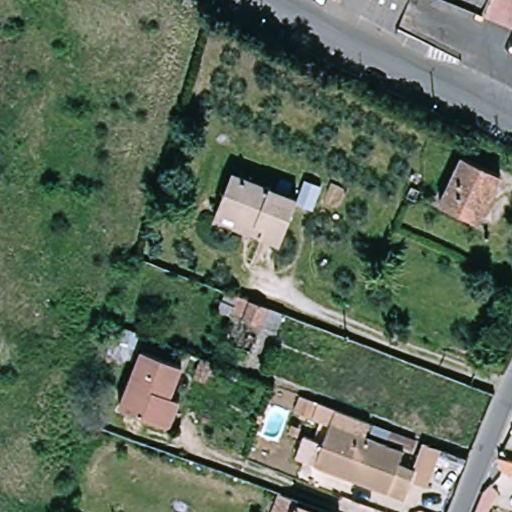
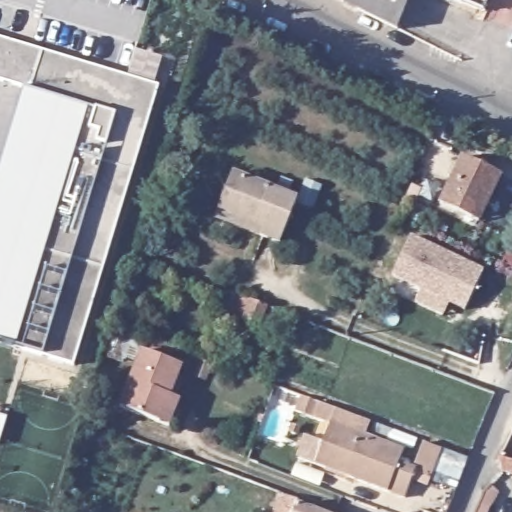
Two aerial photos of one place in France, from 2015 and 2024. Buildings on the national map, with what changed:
unchanged [(398,30),(342,3),(344,0),(411,0),(398,30)]
unchanged [(490,13),(458,0),(495,0),(490,13)]
unchanged [(495,0),(512,0),(512,24),(490,13),(495,0)]
new [(72,364),(0,342),(0,169),(25,87),(0,80),(0,38),(157,85),(72,364)]
unchanged [(504,177),(481,222),(442,203),(465,159),(504,177)]
unchanged [(218,209),(233,175),(297,201),(280,243),(260,235),(215,217),(218,209)]
new [(444,316),(416,303),(421,290),(391,276),(411,236),(485,271),(465,311),(450,304),(444,316)]
unchanged [(227,291),(249,299),(273,306),(290,312),(280,334),(263,327),(223,310),(227,291)]
unchanged [(170,424),(161,420),(122,405),(145,348),(183,362),(172,392),(181,396),(170,424)]
unchanged [(332,422),(300,411),(305,397),(371,420),(366,435),(406,450),(402,462),(417,468),(415,480),(409,498),(340,472),(317,464),(324,445),(332,422)]
unchanged [(431,442),(443,447),(430,486),(415,480),(420,468),(417,468),(427,441),(431,442)]
unchanged [(512,474),(503,471),(500,456),(512,460),(512,474)]
unchanged [(299,501),(326,512),(273,512),(281,490),(300,498),(299,501)]
unchanged [(490,512),(477,512),(481,502),(492,506),(490,512)]

